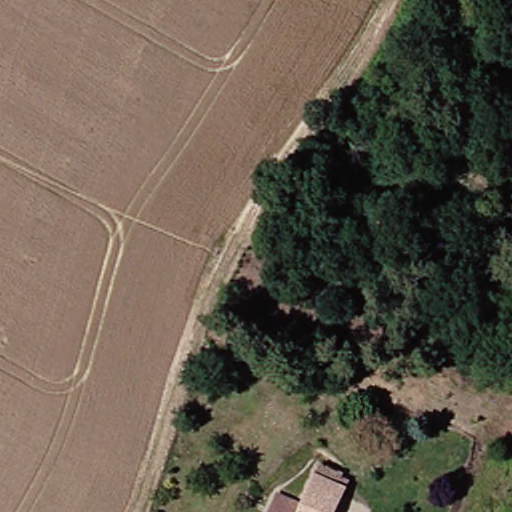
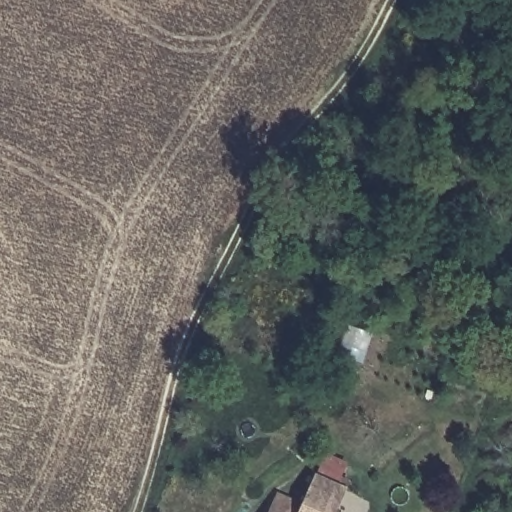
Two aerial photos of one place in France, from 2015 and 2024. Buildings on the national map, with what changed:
unchanged [(261,512),(266,500),(290,510),(305,478),(310,466),(329,473),(323,486),(331,490),(323,512),(261,512)]

